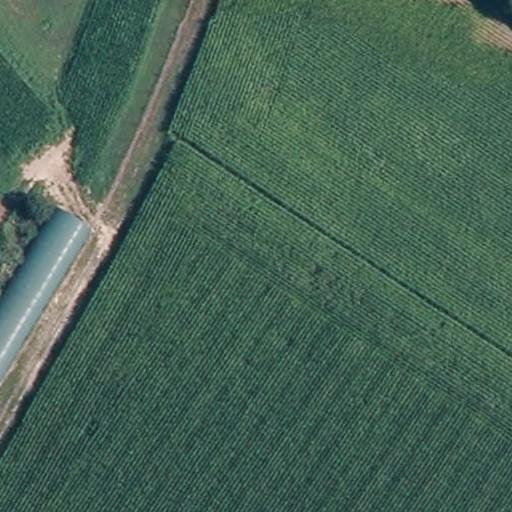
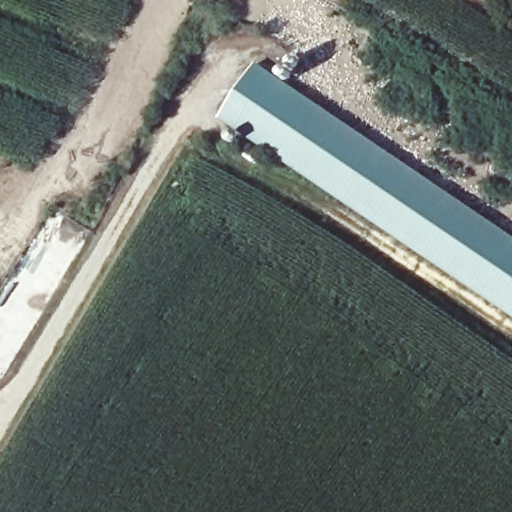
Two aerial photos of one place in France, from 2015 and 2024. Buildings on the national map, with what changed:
new [(512,316),(221,119),(258,65),(512,236),(512,316)]
unchanged [(0,388),(0,298),(53,212),(94,237),(7,379),(1,388),(0,388)]

